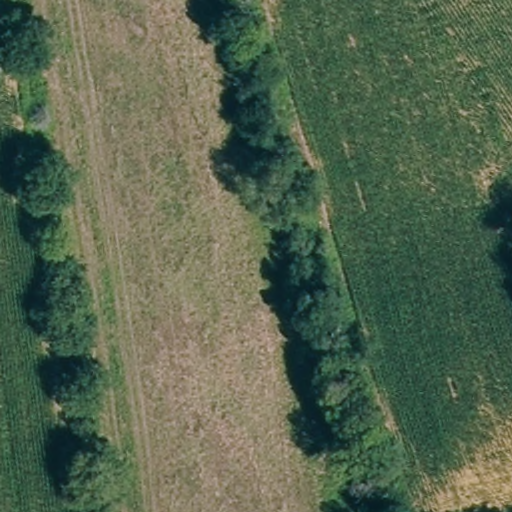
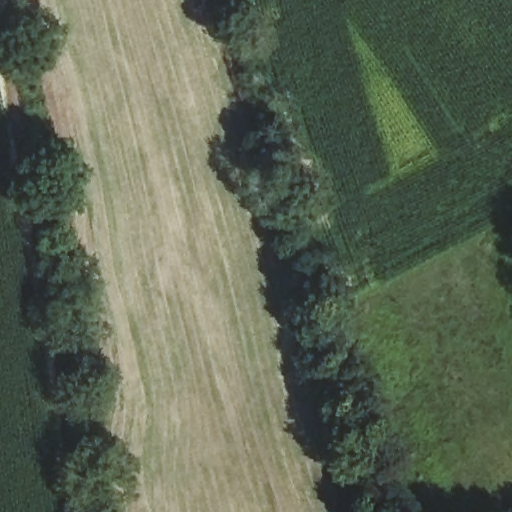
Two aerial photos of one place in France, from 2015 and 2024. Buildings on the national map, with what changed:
[]

